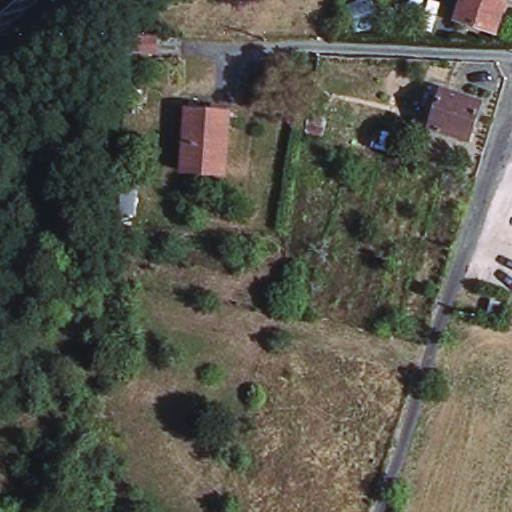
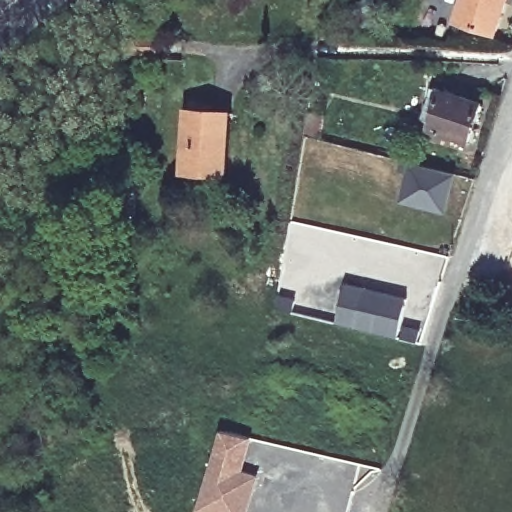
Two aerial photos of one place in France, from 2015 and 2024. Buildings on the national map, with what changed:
unchanged [(504,36),(466,24),(473,0),(512,0),(512,11),(504,36)]
unchanged [(173,35),(171,55),(144,55),(144,51),(116,50),(117,35),(173,35)]
unchanged [(490,105),(477,144),(440,132),(442,125),(432,122),(442,91),(490,105)]
unchanged [(236,116),(233,179),(193,175),(195,115),(236,116)]
new [(408,161),(455,173),(445,213),(399,202),(408,161)]
unchanged [(135,196),(135,218),(121,218),(121,195),(135,196)]
demolished [(148,195),(147,217),(134,217),(134,195),(148,195)]
new [(342,282),(406,297),(399,328),(403,329),(404,324),(420,327),(416,342),(333,323),(342,282)]
unchanged [(510,305),(505,319),(495,316),(500,302),(510,305)]
new [(253,437),(245,469),(258,473),(247,512),(193,512),(219,429),(253,437)]

